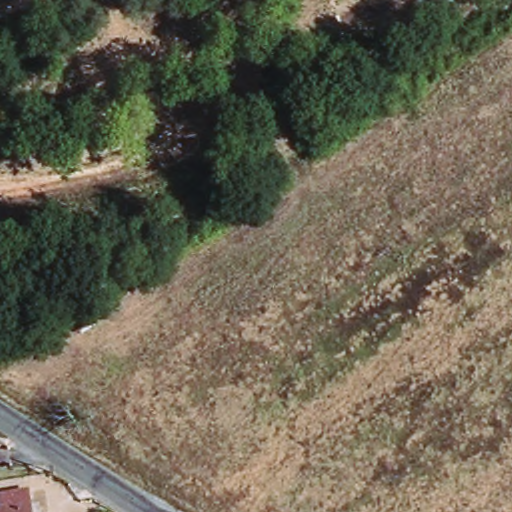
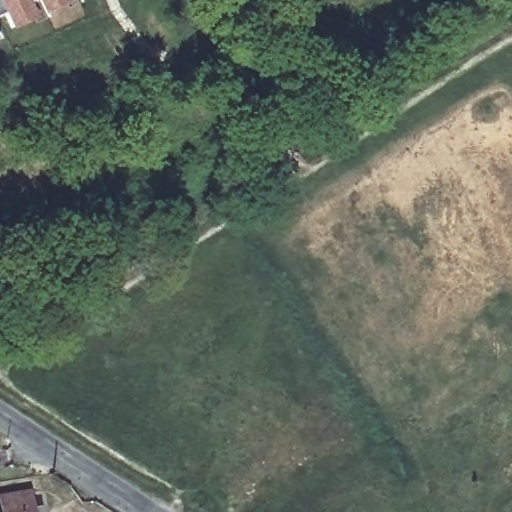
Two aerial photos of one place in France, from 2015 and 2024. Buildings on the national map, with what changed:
new [(66,5),(9,30),(2,15),(0,16),(0,0),(77,0),(77,2),(66,5)]
unchanged [(6,492),(13,491),(38,489),(41,512),(8,512),(6,492)]

